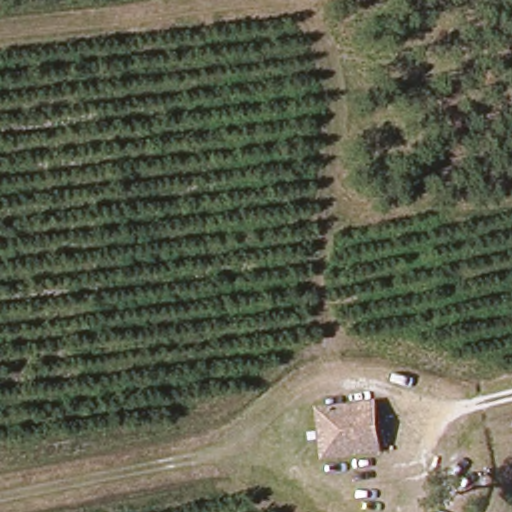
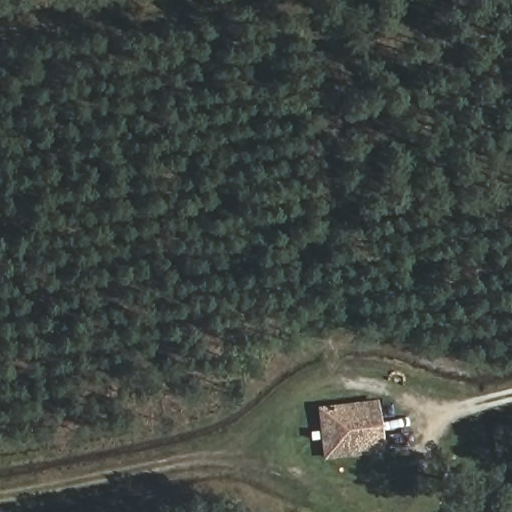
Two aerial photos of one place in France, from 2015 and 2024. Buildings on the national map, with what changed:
unchanged [(336,466),(325,411),(367,401),(372,419),(373,419),(378,458),(336,466)]

